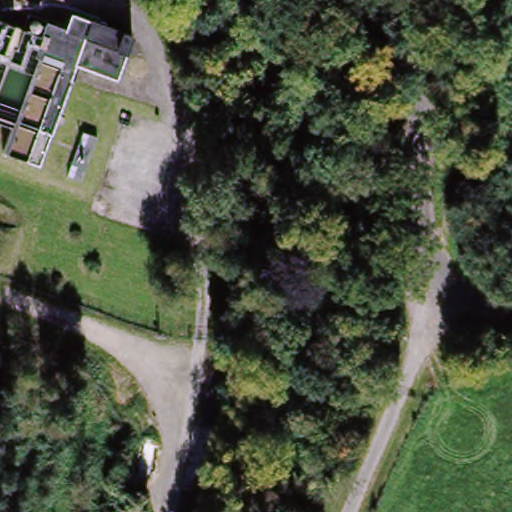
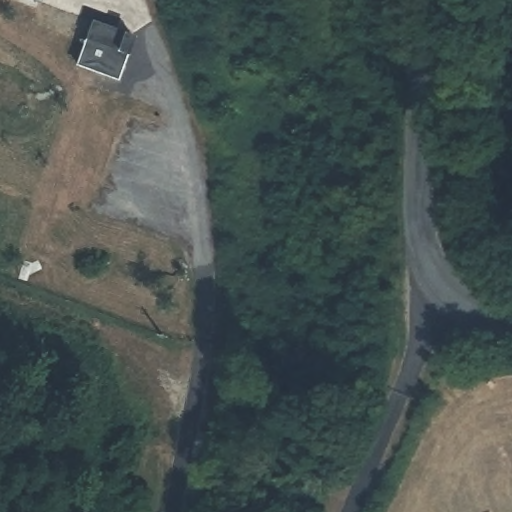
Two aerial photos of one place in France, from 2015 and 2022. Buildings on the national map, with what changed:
demolished [(59,11),(80,15),(77,29),(72,58),(50,171),(11,164),(18,128),(0,125),(0,66),(5,67),(7,54),(13,53),(20,17),(37,20),(37,26),(56,29),(59,11)]
unchanged [(77,29),(80,15),(119,22),(110,65),(72,58),(77,29)]
demolished [(0,58),(0,35),(4,35),(0,58)]
demolished [(117,140),(105,191),(86,186),(100,136),(117,140)]

